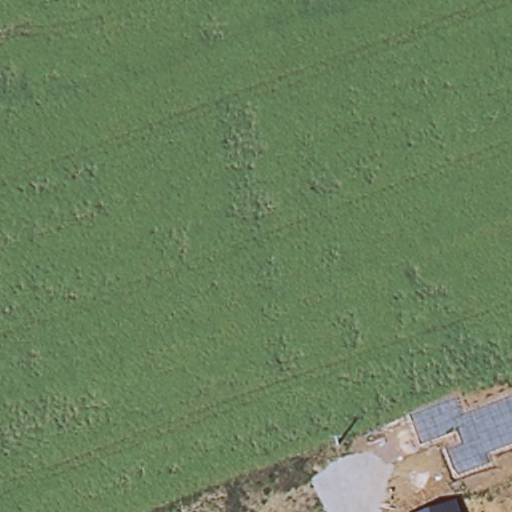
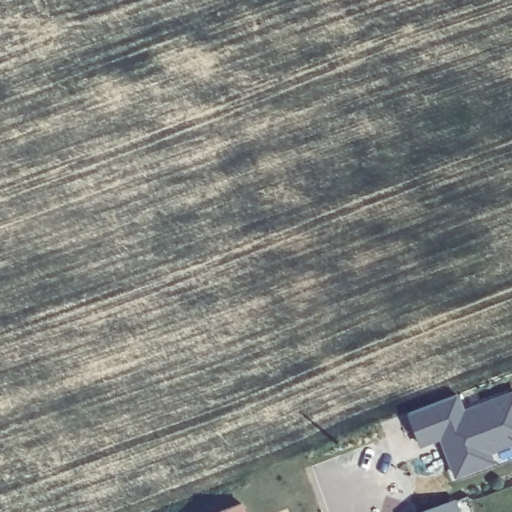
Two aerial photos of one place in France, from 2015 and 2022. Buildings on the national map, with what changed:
new [(491,454),(495,464),(455,478),(439,441),(419,448),(406,413),(460,395),(465,409),(512,390),(512,446),(491,454)]
unchanged [(456,501),(460,512),(427,512),(456,501)]
new [(242,502),(246,512),(214,512),(242,502)]

